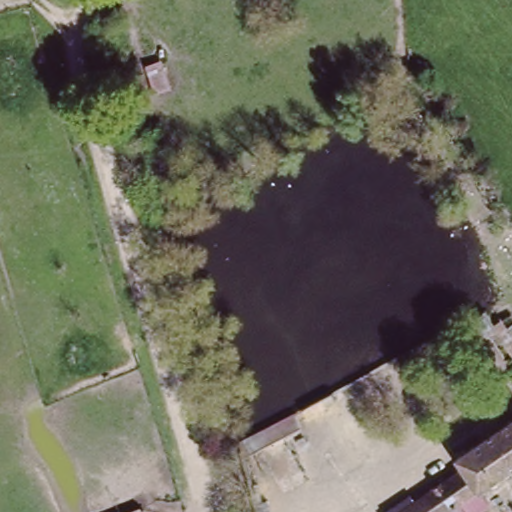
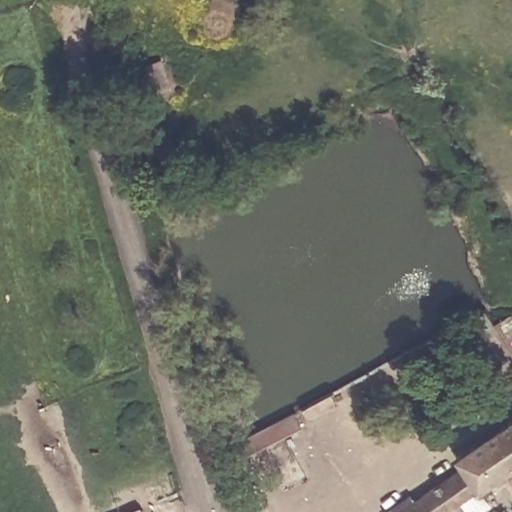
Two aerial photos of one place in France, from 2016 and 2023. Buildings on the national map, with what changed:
unchanged [(160,51),(162,60),(168,80),(150,89),(142,70),(138,59),(160,51)]
unchanged [(476,493),(462,510),(462,512),(390,512),(512,419),(512,469),(476,493)]
unchanged [(247,464),(240,451),(306,420),(312,432),(247,464)]
unchanged [(142,512),(135,512),(142,510),(142,512)]

